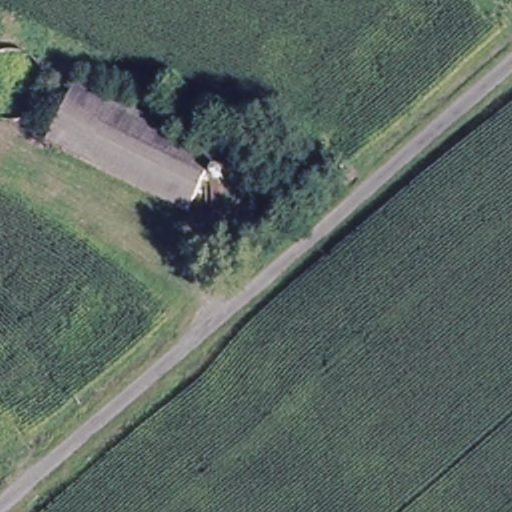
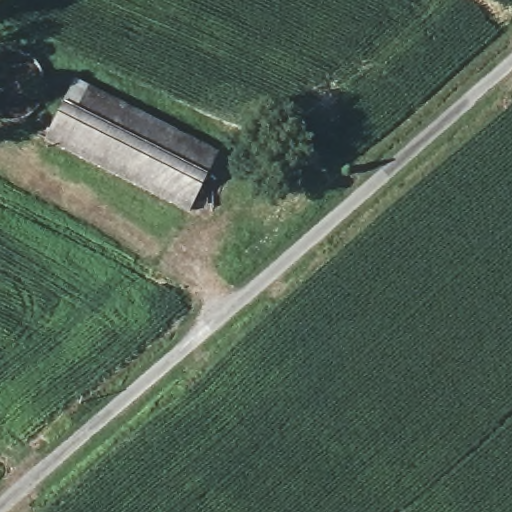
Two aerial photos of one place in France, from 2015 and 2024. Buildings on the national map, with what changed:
unchanged [(79,83),(222,156),(191,218),(47,145),(79,83)]

